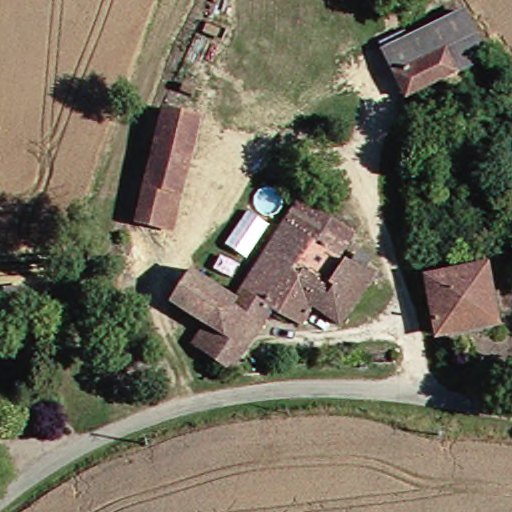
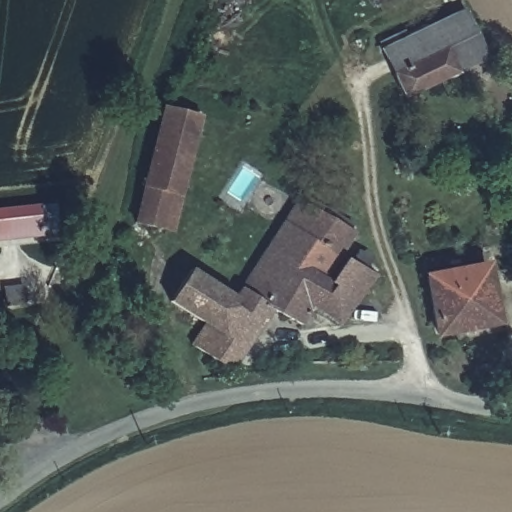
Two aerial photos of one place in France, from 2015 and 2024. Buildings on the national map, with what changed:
unchanged [(413,34),(452,13),(457,23),(477,56),(461,66),(460,55),(454,44),(444,39),(386,72),(382,63),(377,55),(413,34)]
unchanged [(444,39),(454,44),(460,55),(461,66),(399,99),(386,72),(444,39)]
unchanged [(128,224),(159,109),(199,120),(168,233),(128,224)]
new [(0,240),(0,207),(41,204),(44,237),(0,240)]
unchanged [(305,314),(295,328),(265,312),(239,353),(199,326),(164,301),(184,272),(229,302),(294,204),(347,237),(336,258),(348,266),(354,258),(365,266),(360,273),(367,279),(334,330),(305,314)]
unchanged [(475,270),(484,324),(428,332),(418,279),(475,270)]
unchanged [(227,374),(187,348),(199,326),(239,353),(227,374)]

